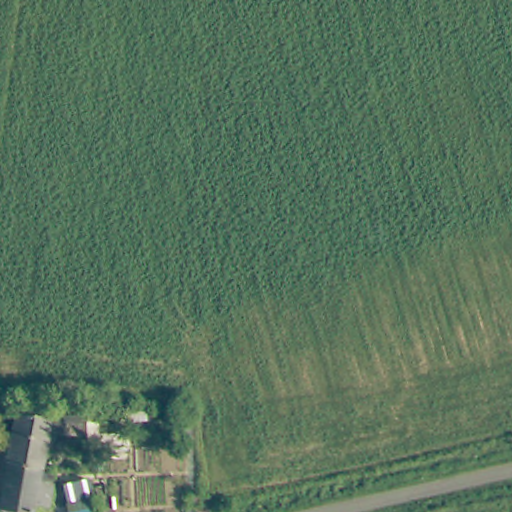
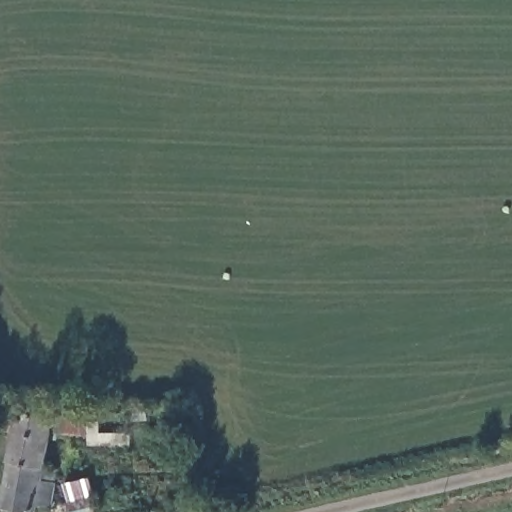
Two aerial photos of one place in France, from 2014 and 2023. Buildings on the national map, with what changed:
unchanged [(29,506),(28,512),(7,512),(0,511),(0,472),(7,435),(11,415),(47,423),(43,442),(34,482),(49,485),(43,508),(29,506)]
unchanged [(86,512),(61,512),(56,495),(79,489),(86,512)]

